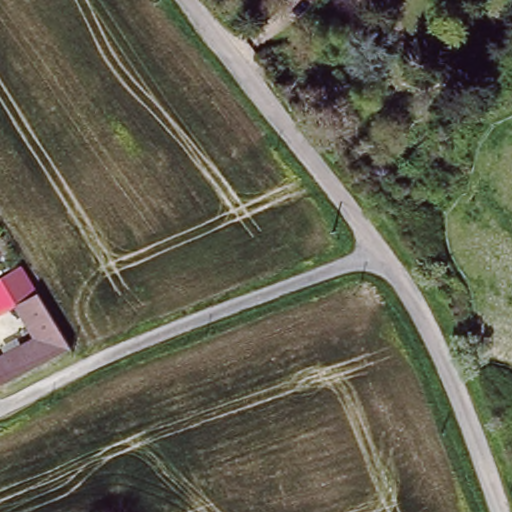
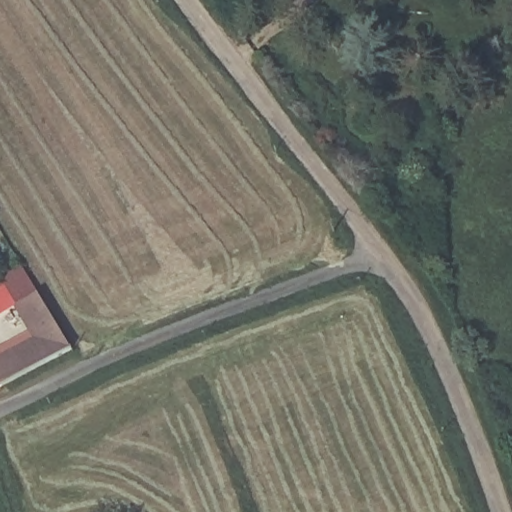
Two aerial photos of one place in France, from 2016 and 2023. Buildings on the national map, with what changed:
unchanged [(38,337),(18,304),(39,292),(73,348),(7,382),(3,384),(0,385),(0,357),(38,337)]

